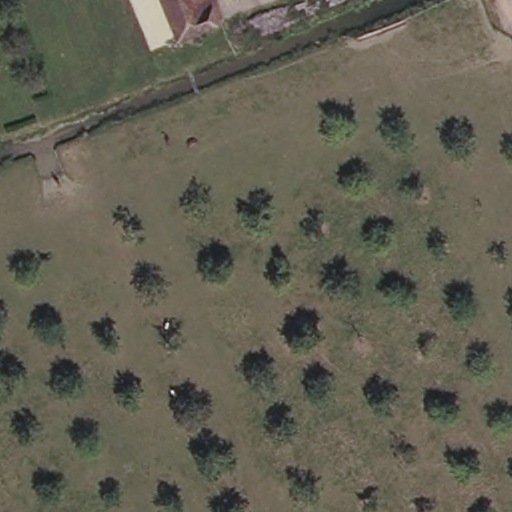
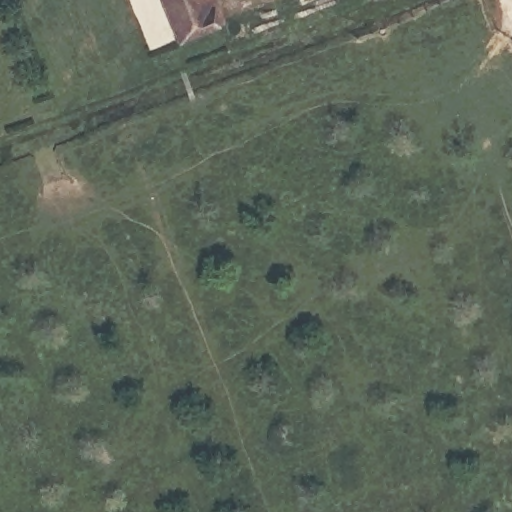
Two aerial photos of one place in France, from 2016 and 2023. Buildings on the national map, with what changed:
unchanged [(172,30),(159,0),(194,0),(201,18),(172,30)]
unchanged [(201,18),(194,0),(212,0),(217,11),(201,18)]

